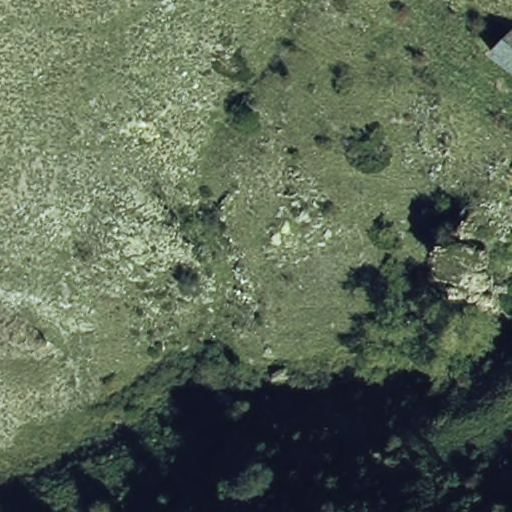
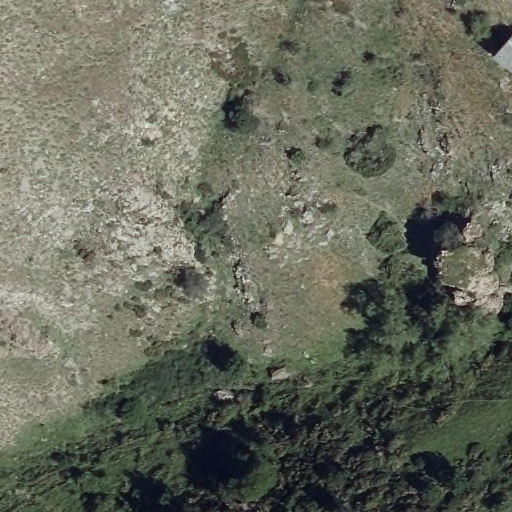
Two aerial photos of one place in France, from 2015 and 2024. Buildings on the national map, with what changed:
unchanged [(512,31),(512,67),(492,53),(512,31)]

